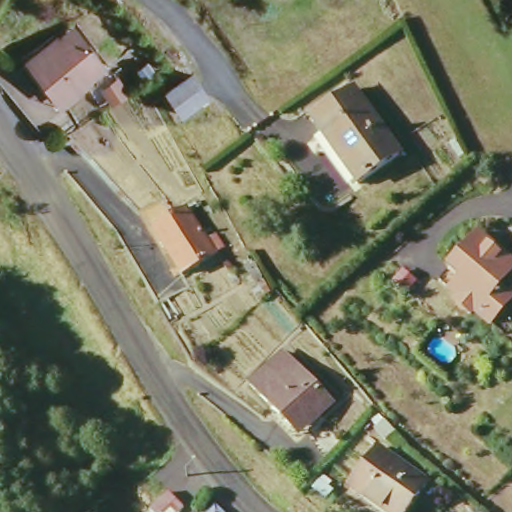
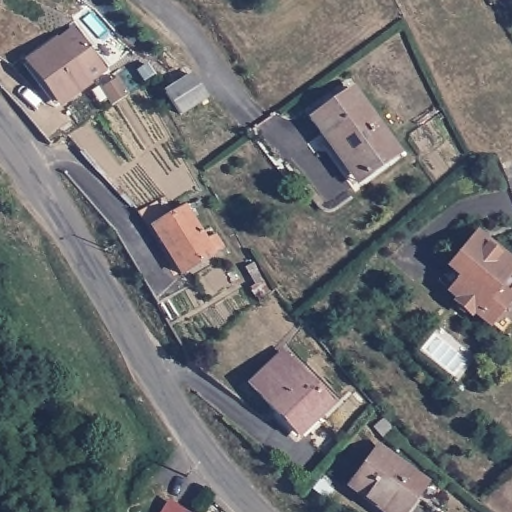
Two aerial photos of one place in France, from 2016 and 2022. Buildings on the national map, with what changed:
unchanged [(59,104),(25,63),(51,41),(67,30),(73,37),(100,71),(59,104)]
unchanged [(167,93),(191,79),(203,100),(179,115),(167,93)]
unchanged [(108,105),(99,90),(114,80),(124,96),(108,105)]
unchanged [(311,121),(354,91),(399,156),(355,186),(311,121)]
unchanged [(155,230),(187,207),(208,242),(218,237),(225,250),(183,276),(155,230)]
unchanged [(475,306),(472,310),(460,300),(464,296),(454,288),(465,274),(453,264),(479,233),(512,260),(512,267),(502,279),(499,277),(495,282),(506,291),(511,295),(492,319),(483,312),(475,306)]
unchanged [(301,438),(293,429),(254,382),(289,352),(332,404),(314,420),(316,424),(301,438)]
unchanged [(377,428),(387,420),(395,431),(385,439),(377,428)]
unchanged [(348,490),(378,451),(426,489),(408,512),(377,512),(348,490)]

